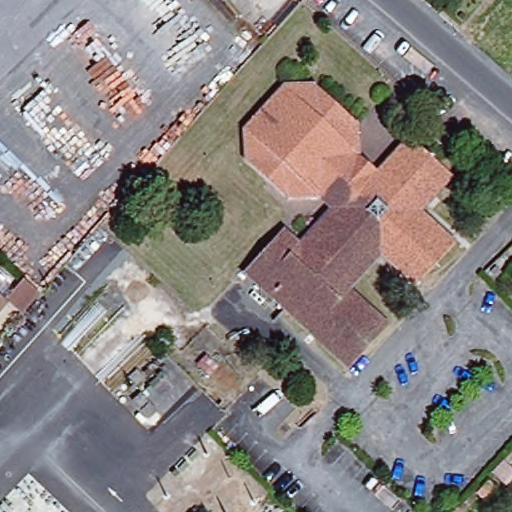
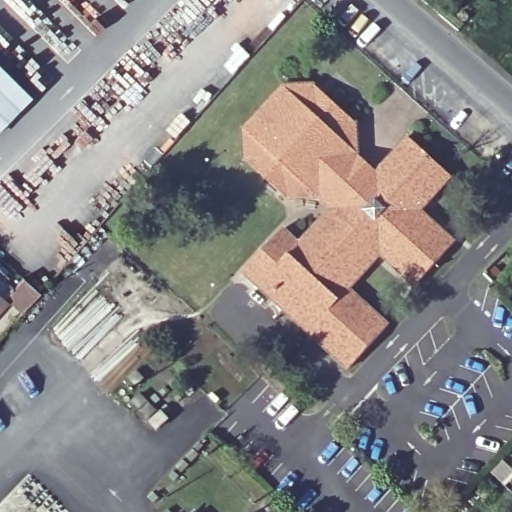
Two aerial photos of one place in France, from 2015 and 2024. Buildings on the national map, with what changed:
new [(0,129),(0,66),(31,97),(0,129)]
unchanged [(284,84),(315,85),(359,126),(358,155),(378,173),(410,139),(454,180),(423,214),(456,245),(417,289),(383,258),(352,291),(389,326),(348,369),(244,271),(284,228),(299,242),(329,209),(319,199),(289,199),(245,157),(244,127),(284,84)]
unchanged [(18,314),(1,299),(19,280),(36,294),(18,314)]

